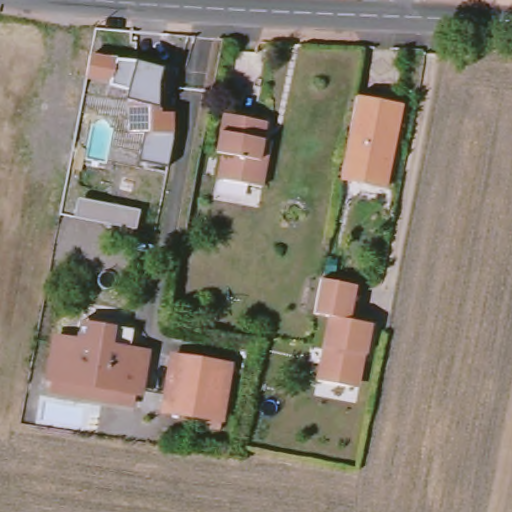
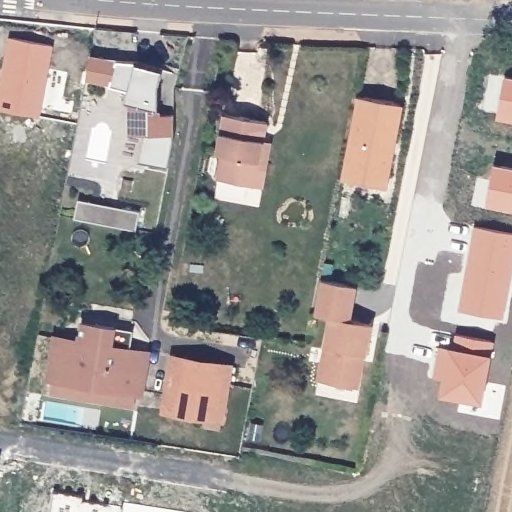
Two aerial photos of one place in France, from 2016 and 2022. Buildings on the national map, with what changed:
new [(0,111),(0,74),(9,39),(52,45),(43,121),(0,111)]
unchanged [(117,59),(164,69),(159,88),(160,109),(174,111),(173,134),(167,164),(139,159),(144,133),(127,134),(127,101),(125,99),(126,93),(107,88),(107,86),(87,83),(92,54),(117,59)]
new [(506,134),(508,85),(512,85),(512,134),(506,134)]
unchanged [(375,185),(347,179),(363,95),(407,104),(400,140),(394,139),(392,153),(398,154),(393,176),(391,188),(375,185)]
unchanged [(217,178),(223,153),(217,152),(226,114),(267,121),(264,139),(272,140),(268,160),(262,187),(217,178)]
new [(493,222),(493,182),(512,181),(512,222),(493,222)]
unchanged [(140,212),(136,231),(73,218),(77,199),(140,212)]
new [(508,318),(455,313),(474,227),(512,235),(512,295),(508,318)]
unchanged [(327,281),(359,287),(353,319),(376,324),(370,354),(365,354),(358,387),(323,380),(335,319),(320,315),(318,315),(325,280),(327,281)]
unchanged [(130,392),(42,379),(48,337),(74,341),(77,322),(110,327),(130,329),(127,349),(143,352),(137,393),(130,392)]
new [(450,362),(470,361),(470,347),(503,349),(502,394),(491,396),(491,418),(448,419),(450,362)]
unchanged [(165,411),(172,357),(230,365),(222,419),(165,411)]
unchanged [(130,392),(128,404),(40,391),(42,379),(130,392)]
new [(50,488),(193,512),(46,512),(50,488)]

